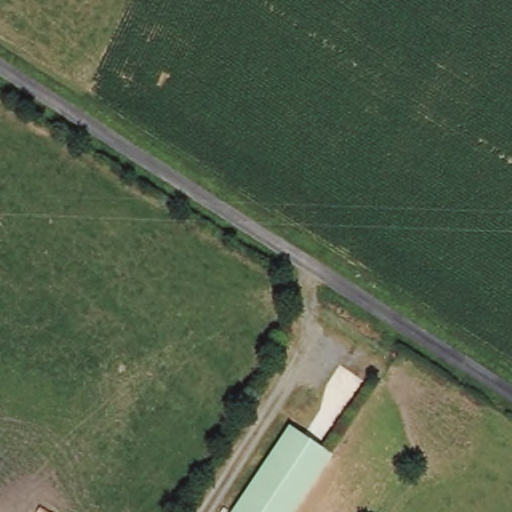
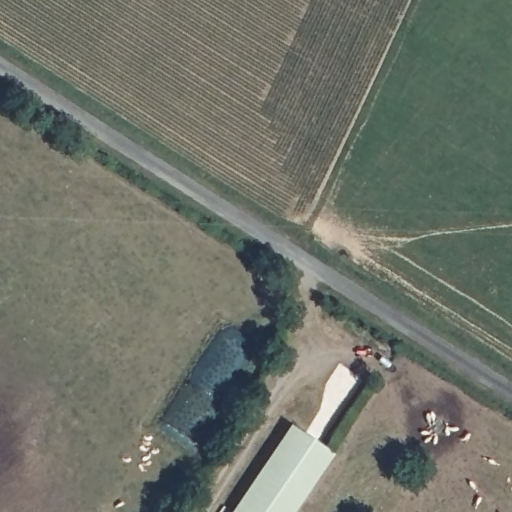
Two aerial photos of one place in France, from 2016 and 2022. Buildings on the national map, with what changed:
unchanged [(296,422),(332,447),(288,512),(234,512),(259,476),(296,422)]

